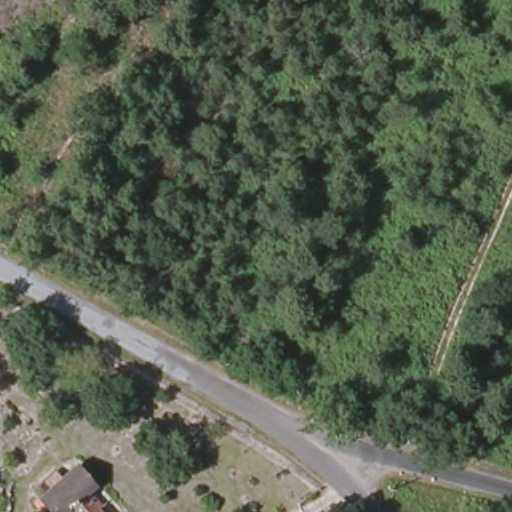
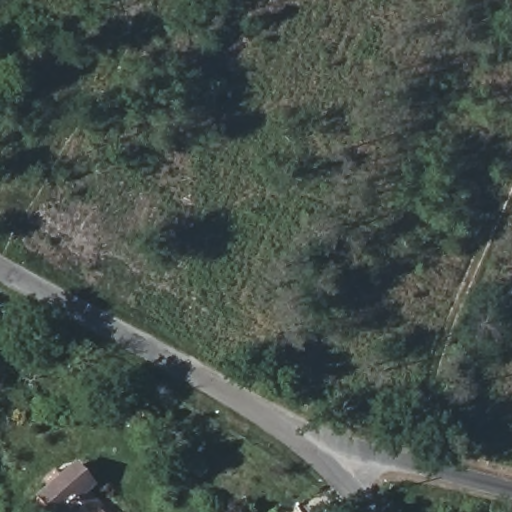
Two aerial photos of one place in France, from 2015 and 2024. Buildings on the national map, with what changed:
unchanged [(71,466),(88,485),(87,491),(107,511),(106,512),(61,512),(50,512),(35,495),(71,466)]

